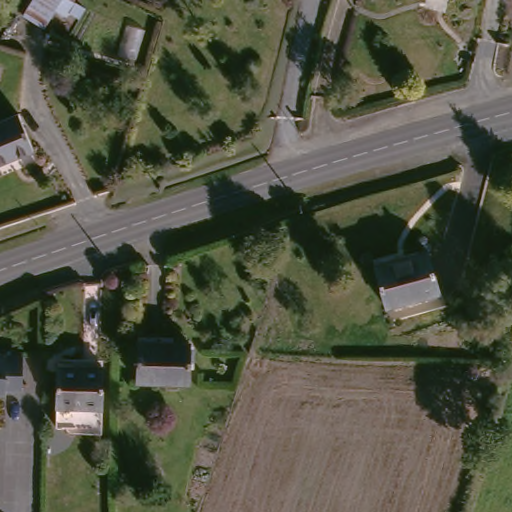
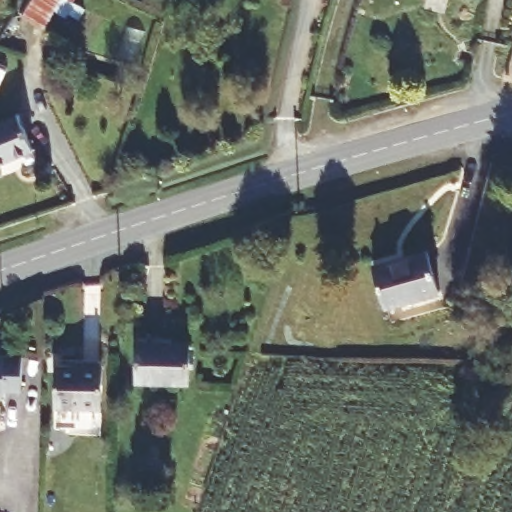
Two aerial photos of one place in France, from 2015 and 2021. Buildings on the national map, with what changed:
unchanged [(30,19),(41,0),(67,0),(51,30),(30,19)]
unchanged [(27,114),(40,150),(0,164),(0,124),(27,114)]
unchanged [(395,310),(379,258),(406,251),(408,257),(435,249),(448,295),(395,310)]
unchanged [(197,343),(195,385),(142,381),(144,340),(197,343)]
unchanged [(11,392),(11,394),(0,394),(0,354),(25,355),(25,392),(11,392)]
unchanged [(103,367),(98,428),(52,425),(57,364),(103,367)]

